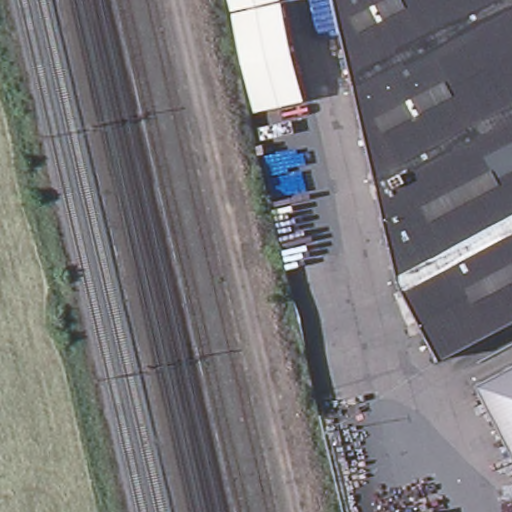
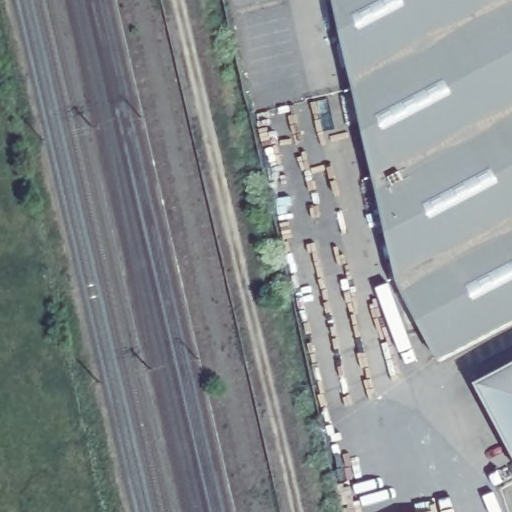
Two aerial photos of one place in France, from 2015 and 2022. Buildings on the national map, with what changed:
unchanged [(395,286),(332,0),(512,0),(512,322),(433,363),(395,286)]
unchanged [(474,388),(512,369),(512,460),(474,388)]
unchanged [(431,512),(427,512),(431,511),(431,512)]

